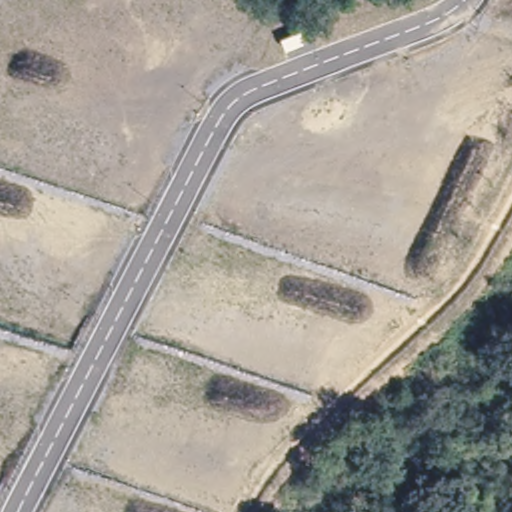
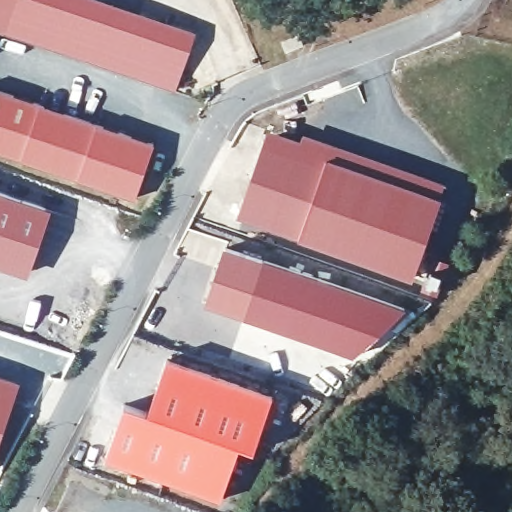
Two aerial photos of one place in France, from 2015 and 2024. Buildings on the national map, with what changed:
new [(100,0),(200,35),(180,91),(14,34),(26,0),(100,0)]
new [(142,198),(0,149),(0,88),(161,143),(142,198)]
new [(301,139),(303,132),(445,182),(440,195),(411,277),(298,239),(238,216),(268,128),(301,139)]
new [(29,276),(0,267),(0,190),(51,208),(29,276)]
new [(232,247),(355,288),(336,345),(212,304),(232,247)]
new [(353,356),(336,345),(355,288),(406,305),(353,356)]
new [(271,393),(278,395),(270,424),(262,422),(252,448),(237,443),(219,498),(105,458),(124,404),(149,413),(167,357),(271,393)]
new [(0,376),(17,382),(0,432),(0,376)]

